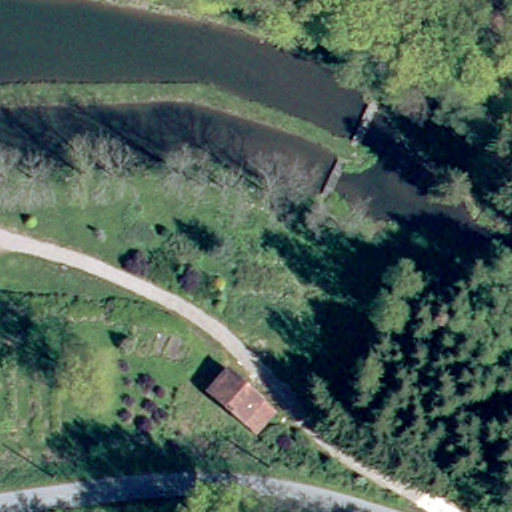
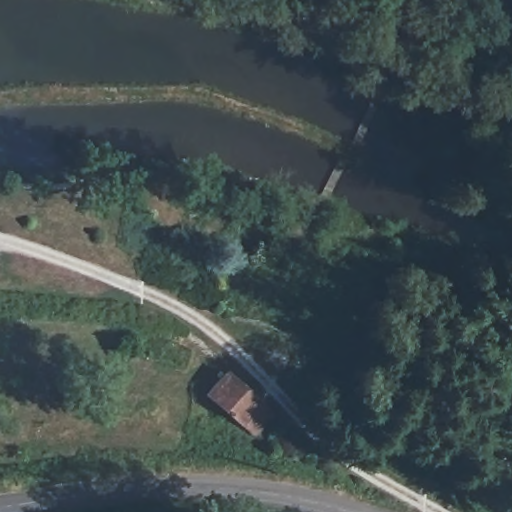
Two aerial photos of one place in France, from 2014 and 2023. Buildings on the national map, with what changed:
unchanged [(260,402),(257,405),(272,415),(258,436),(207,400),(226,377),(260,402)]

